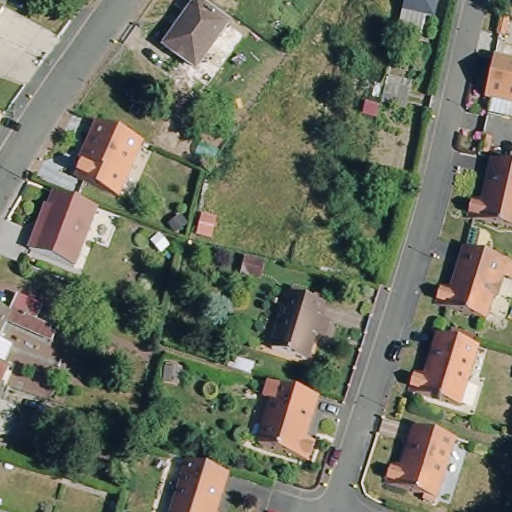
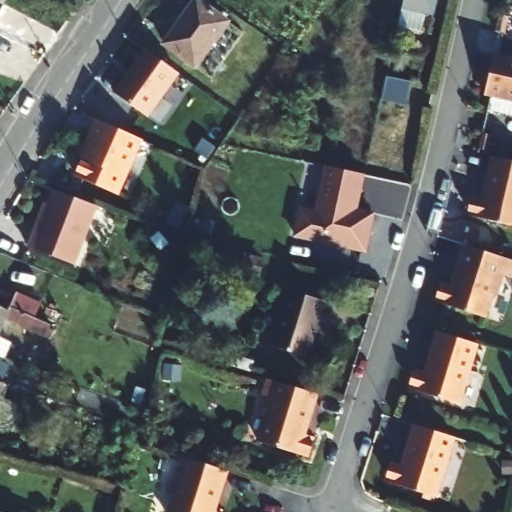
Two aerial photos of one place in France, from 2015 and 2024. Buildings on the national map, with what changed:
unchanged [(0,16),(0,0),(7,0),(0,16)]
unchanged [(198,0),(212,0),(234,16),(202,61),(170,38),(198,0)]
unchanged [(407,10),(410,0),(443,0),(440,13),(430,11),(426,29),(404,24),(407,10)]
unchanged [(489,97),(492,86),(486,84),(495,45),(512,49),(512,103),(489,97)]
new [(182,73),(148,116),(114,91),(145,47),(182,73)]
unchanged [(383,74),(407,79),(402,102),(377,96),(383,74)]
unchanged [(83,147),(78,144),(91,116),(136,136),(112,189),(111,191),(71,171),(80,154),(83,147)]
unchanged [(467,214),(470,195),(482,199),(487,172),(486,171),(490,155),(512,161),(512,226),(467,214)]
new [(367,253),(295,238),(299,206),(314,209),(324,165),(365,174),(358,208),(375,212),(367,253)]
unchanged [(33,229),(35,230),(52,187),(95,204),(72,262),(27,245),(33,229)]
unchanged [(502,274),(495,295),(491,294),(483,317),(434,300),(440,281),(452,285),(460,260),(457,258),(462,245),(512,261),(512,275),(511,278),(502,274)]
unchanged [(322,298),(318,312),(328,315),(323,333),(312,329),(305,355),(268,342),(287,287),(322,298)]
unchanged [(18,290),(42,301),(37,313),(52,320),(51,324),(57,327),(52,335),(10,315),(0,336),(0,303),(10,308),(18,290)]
unchanged [(412,387),(417,368),(430,371),(436,347),(433,346),(438,330),(480,343),(460,403),(412,387)]
unchanged [(0,373),(0,360),(5,362),(0,373)]
unchanged [(310,406),(302,429),(315,435),(309,454),(260,437),(273,394),(263,390),(268,375),(287,382),(318,392),(313,407),(310,406)]
unchanged [(0,381),(10,384),(3,398),(0,397),(0,381)]
unchanged [(457,435),(438,496),(388,480),(395,460),(405,463),(413,438),(411,437),(415,422),(457,435)]
unchanged [(192,449),(202,452),(232,462),(226,477),(223,476),(215,500),(229,504),(227,512),(184,512),(172,508),(192,449)]
unchanged [(0,512),(0,509),(9,512),(0,512)]

